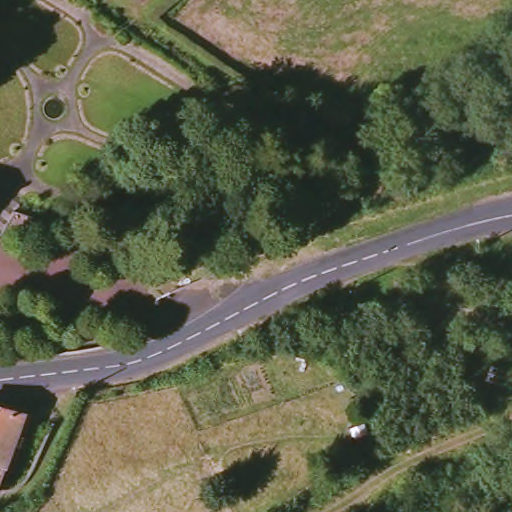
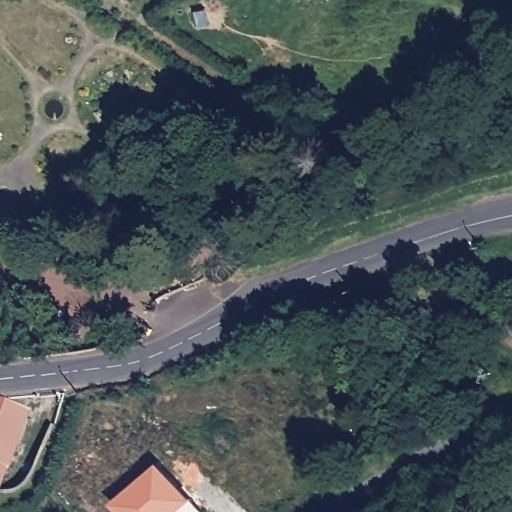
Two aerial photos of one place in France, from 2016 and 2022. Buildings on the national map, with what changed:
unchanged [(341,327),(351,326),(351,338),(341,338),(341,327)]
unchanged [(28,477),(27,479),(25,481),(24,483),(23,484),(21,486),(20,487),(18,488),(13,489),(1,493),(0,493),(0,408),(21,414),(4,464),(30,472),(28,474),(28,477)]
new [(154,462),(196,512),(118,512),(108,501),(154,462)]

